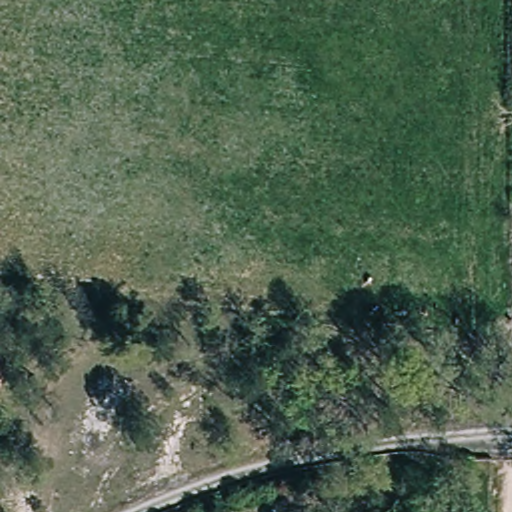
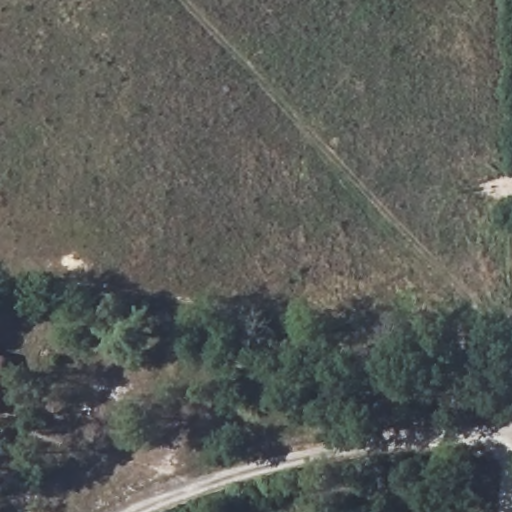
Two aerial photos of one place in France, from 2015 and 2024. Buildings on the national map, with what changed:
unchanged [(0,386),(0,357),(8,359),(0,386)]

